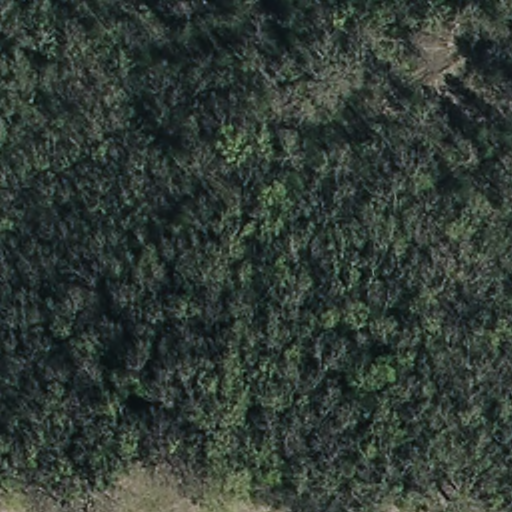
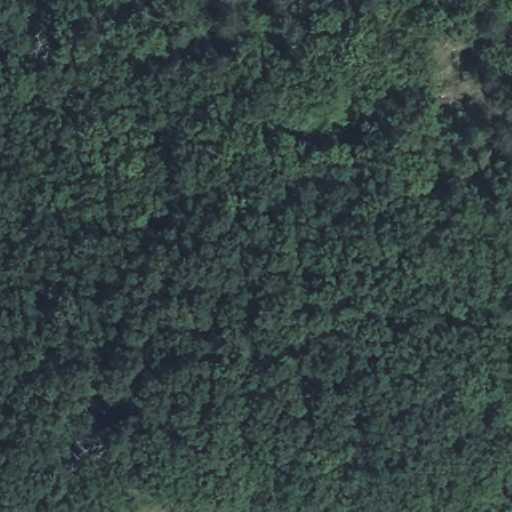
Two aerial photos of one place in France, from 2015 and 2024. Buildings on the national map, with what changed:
[]

